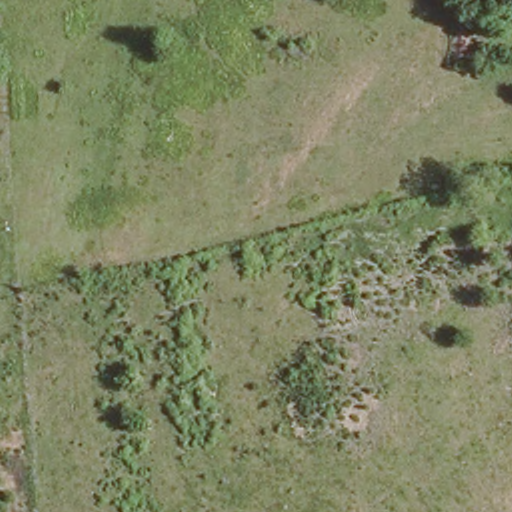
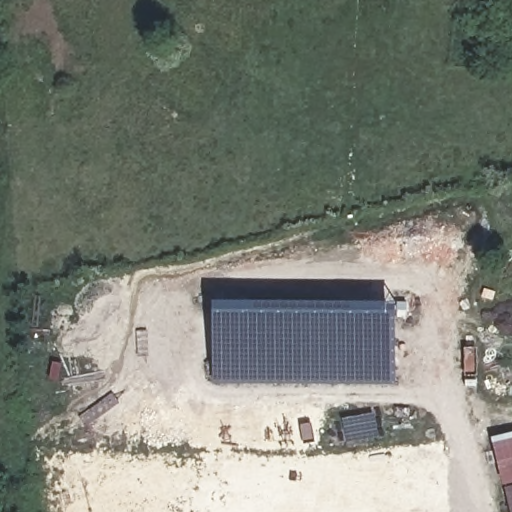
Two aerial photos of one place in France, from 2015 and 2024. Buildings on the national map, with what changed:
new [(214,383),(214,298),(397,299),(396,384),(214,383)]
new [(512,432),(512,512),(510,512),(493,437),(512,432)]

